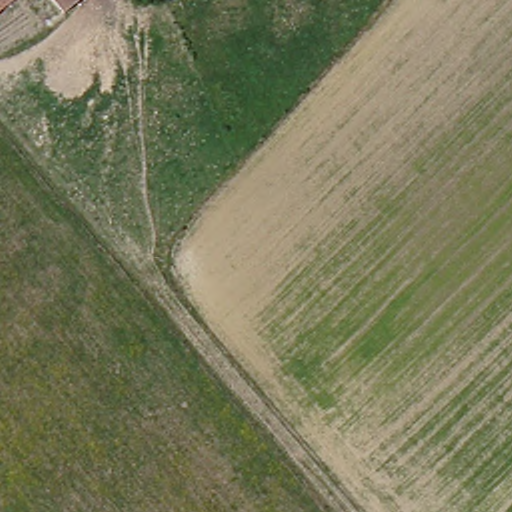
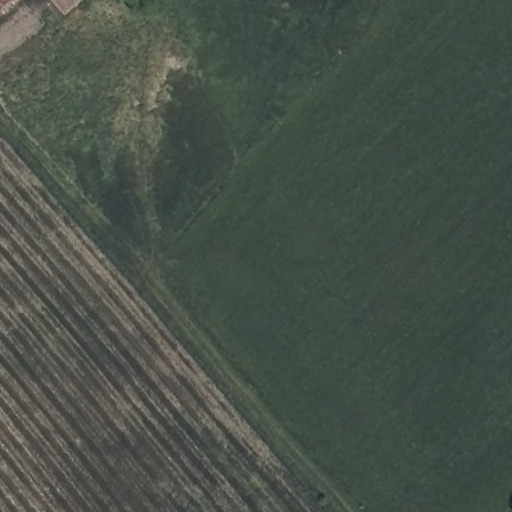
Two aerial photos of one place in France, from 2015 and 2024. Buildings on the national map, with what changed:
unchanged [(0,28),(0,0),(31,0),(0,28)]
unchanged [(75,13),(62,0),(91,0),(75,13)]

